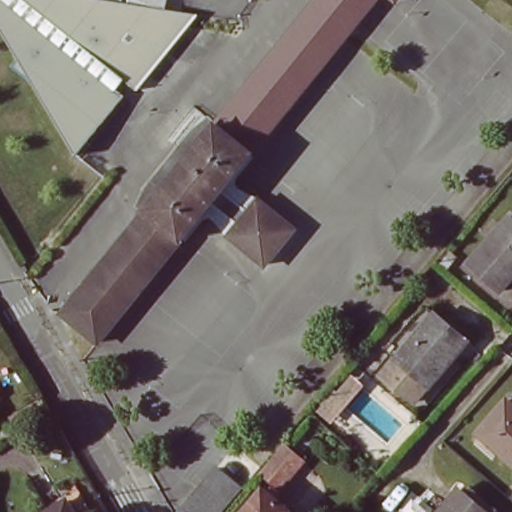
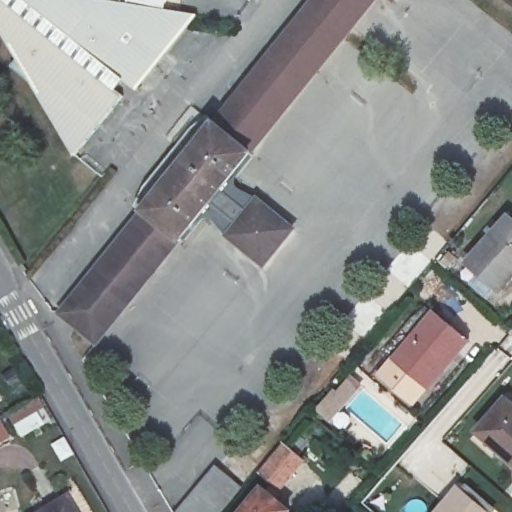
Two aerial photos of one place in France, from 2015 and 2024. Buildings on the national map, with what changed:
unchanged [(15,54),(0,31),(0,0),(159,0),(157,9),(191,18),(133,89),(122,82),(113,91),(118,98),(71,156),(27,84),(4,66),(15,54)]
unchanged [(185,141),(196,150),(317,0),(375,0),(232,178),(297,229),(265,267),(200,217),(100,343),(64,316),(167,187),(155,178),(185,141)]
unchanged [(389,0),(392,0),(391,1),(389,0)]
unchanged [(510,213),(512,214),(512,274),(498,289),(467,262),(510,213)]
unchanged [(439,320),(473,351),(453,376),(450,372),(430,393),(417,409),(386,382),(399,367),(439,320)]
unchanged [(508,399),(512,403),(512,459),(480,431),(508,399)]
unchanged [(285,446),(305,463),(283,489),(263,472),(285,446)]
unchanged [(218,512),(179,512),(217,468),(240,486),(218,512)]
unchanged [(263,487),(291,512),(243,512),(263,487)]
unchanged [(460,493),(481,512),(442,512),(460,493)]
unchanged [(63,500),(71,512),(44,512),(63,500)]

